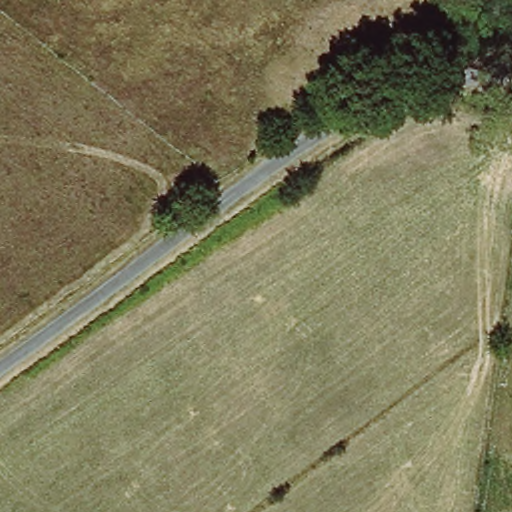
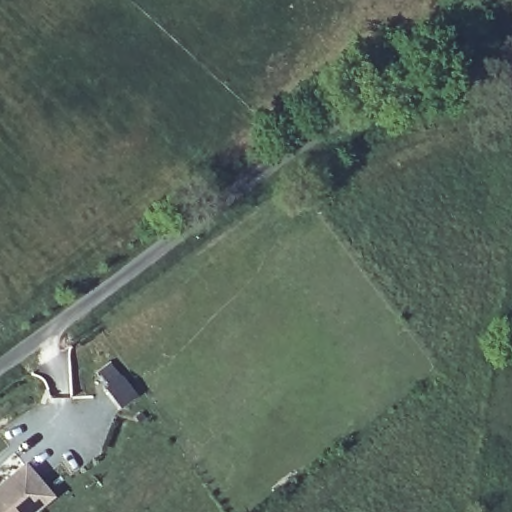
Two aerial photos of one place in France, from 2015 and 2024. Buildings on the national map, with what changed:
new [(50,498),(33,512),(0,512),(0,485),(24,466),(50,498)]

